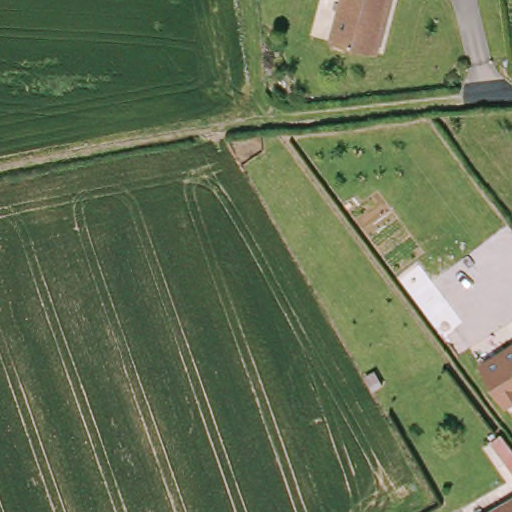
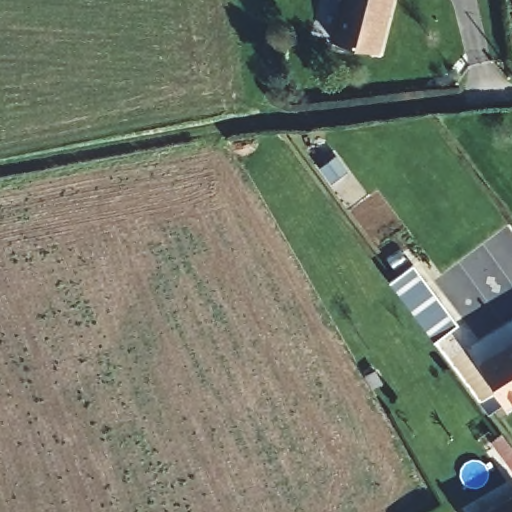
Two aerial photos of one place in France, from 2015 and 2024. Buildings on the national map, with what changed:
unchanged [(377,47),(333,35),(342,0),(389,0),(377,47)]
new [(390,284),(412,267),(456,324),(433,341),(390,284)]
unchanged [(512,394),(501,400),(477,360),(512,341),(512,394)]
unchanged [(512,512),(486,512),(512,498),(512,512)]

